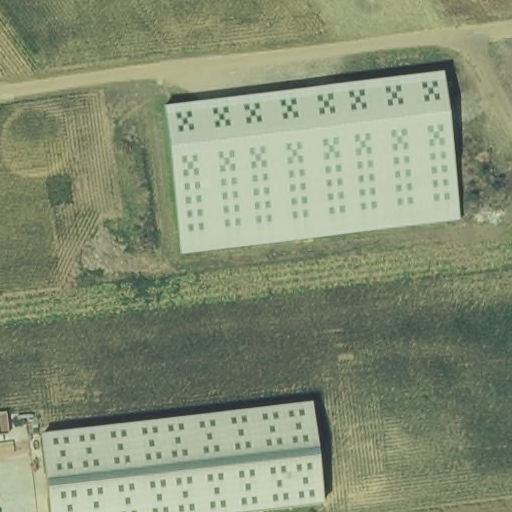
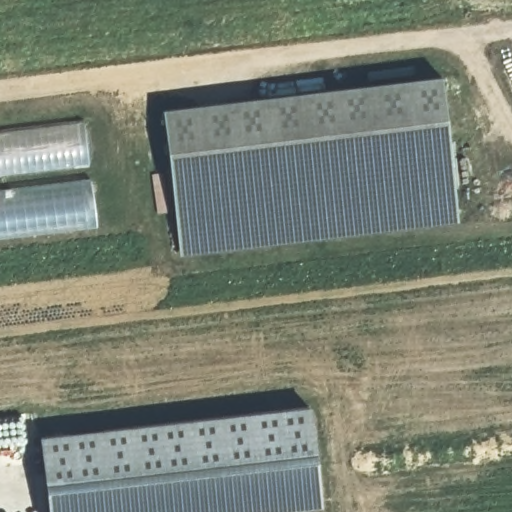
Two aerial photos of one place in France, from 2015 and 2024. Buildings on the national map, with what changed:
unchanged [(458,222),(181,256),(164,110),(441,76),(458,222)]
new [(0,129),(82,119),(87,166),(0,177),(0,129)]
new [(97,227),(0,240),(0,190),(91,179),(97,227)]
unchanged [(326,507),(287,512),(49,512),(40,438),(312,403),(326,507)]

